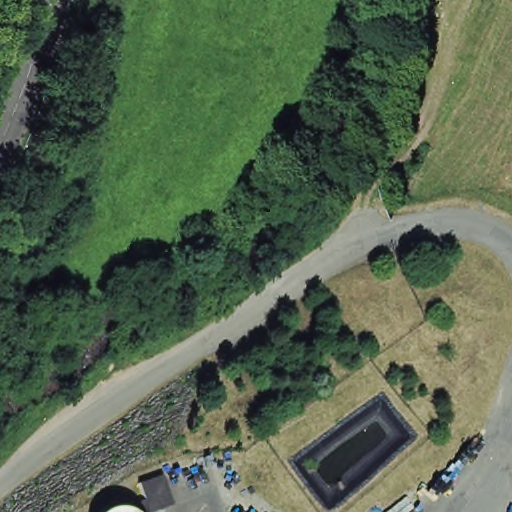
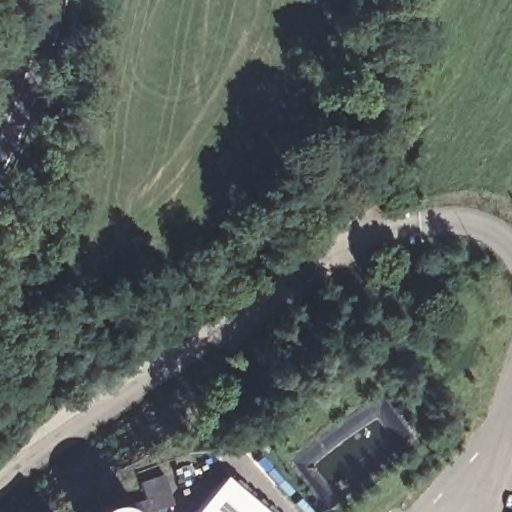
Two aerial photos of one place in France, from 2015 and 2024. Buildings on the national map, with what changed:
unchanged [(143,497),(137,480),(160,472),(171,503),(145,512),(132,512),(122,506),(121,505),(143,497)]
new [(264,512),(196,512),(224,478),(264,512)]

